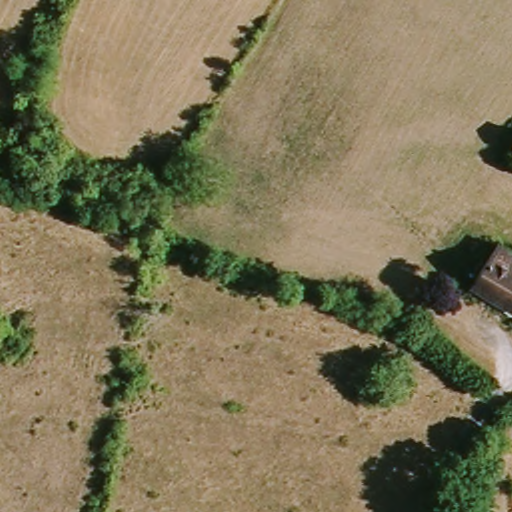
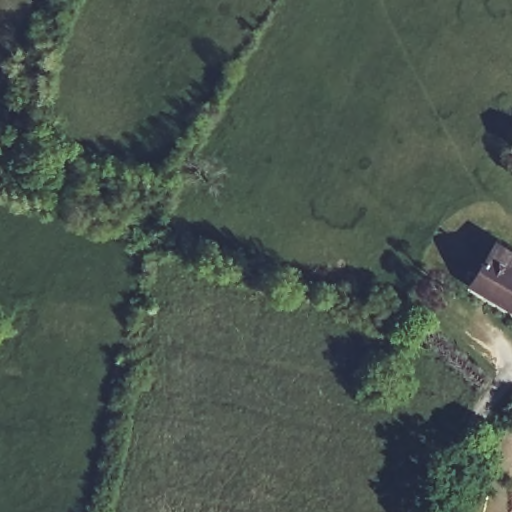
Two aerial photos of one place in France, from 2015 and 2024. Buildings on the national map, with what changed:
unchanged [(510,145),(512,141),(512,145),(510,145)]
unchanged [(464,284),(489,241),(512,254),(512,312),(464,284)]

